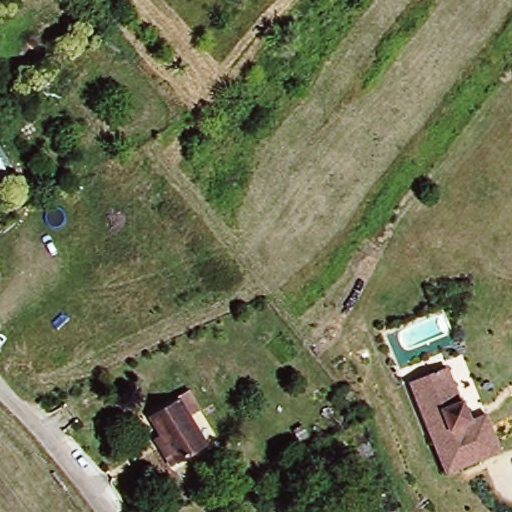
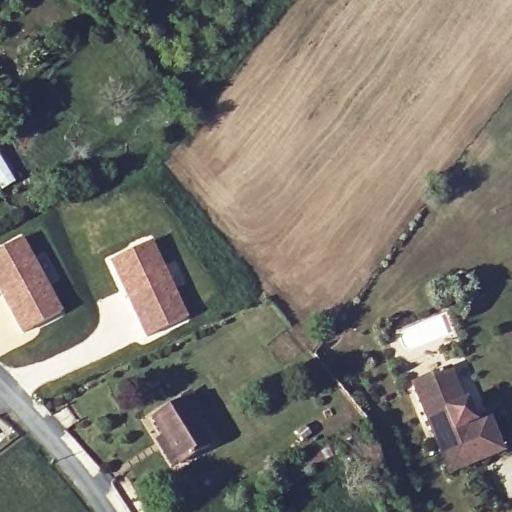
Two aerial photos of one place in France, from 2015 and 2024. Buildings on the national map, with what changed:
new [(15,182),(2,191),(0,188),(0,157),(15,182)]
new [(20,238),(64,312),(21,336),(0,299),(0,249),(20,238)]
new [(150,240),(189,318),(145,340),(107,262),(150,240)]
unchanged [(452,484),(439,452),(434,455),(402,382),(444,364),(447,372),(464,364),(497,440),(504,461),(452,484)]
unchanged [(150,414),(183,398),(207,447),(175,464),(168,467),(152,439),(160,435),(150,414)]
unchanged [(320,473),(310,449),(365,427),(375,452),(320,473)]
unchanged [(407,464),(397,452),(409,442),(419,454),(407,464)]

